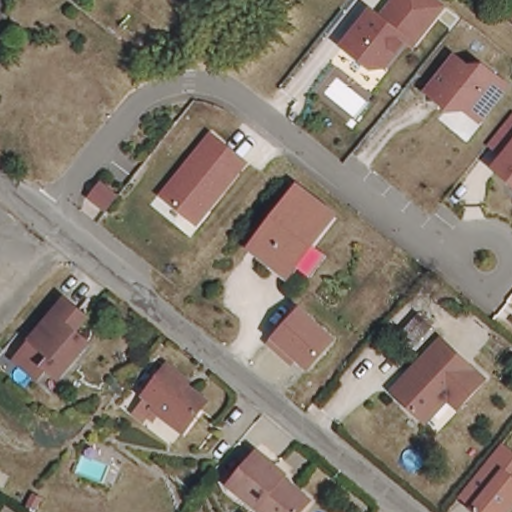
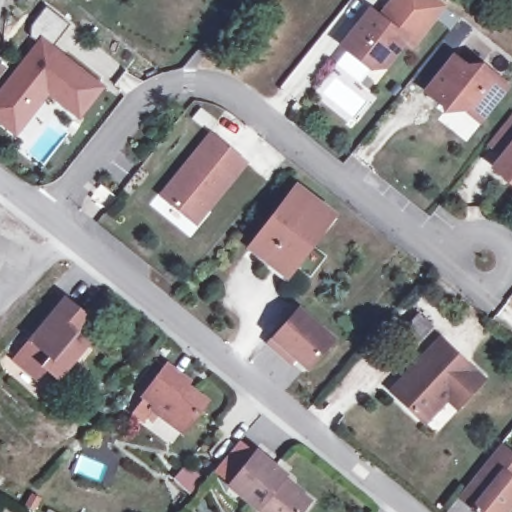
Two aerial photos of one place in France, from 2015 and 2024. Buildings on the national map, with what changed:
unchanged [(369,8),(378,16),(391,0),(439,0),(449,8),(413,53),(406,49),(388,73),(370,73),(338,47),(369,7),(369,8)]
new [(35,42),(28,36),(30,27),(46,6),(70,25),(52,45),(104,85),(79,120),(48,95),(16,136),(0,124),(0,89),(35,42)]
unchanged [(475,62),(481,54),(512,80),(512,87),(478,128),(451,106),(446,112),(421,88),(453,46),(475,62)]
unchanged [(502,156),(488,145),(512,117),(512,185),(492,170),(502,156)]
unchanged [(213,132),(250,165),(196,229),(158,197),(213,132)]
unchanged [(292,183),(332,216),(289,271),(248,243),(292,183)]
unchanged [(62,371),(50,362),(41,372),(20,355),(70,296),(83,307),(91,313),(79,326),(91,336),(62,371)]
unchanged [(297,309),(336,342),(309,374),(271,341),(297,309)]
new [(419,314),(431,325),(409,350),(397,338),(419,314)]
unchanged [(424,414),(395,387),(443,335),(486,375),(461,403),(450,393),(428,417),(424,414)]
unchanged [(143,390),(165,362),(186,378),(183,382),(203,397),(181,425),(153,402),(155,399),(143,390)]
unchanged [(512,453),(512,506),(507,512),(471,512),(469,511),(457,497),(502,445),(512,453)]
unchanged [(227,482),(256,449),(284,470),(281,474),(306,496),(293,512),(265,512),(227,482)]

